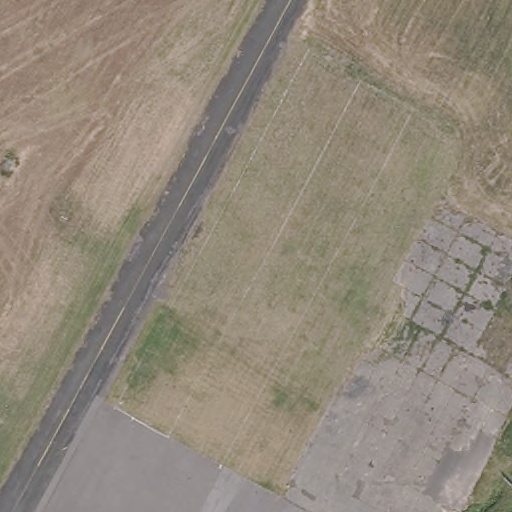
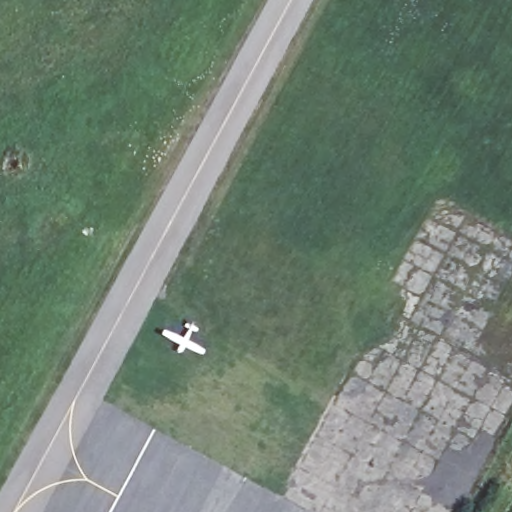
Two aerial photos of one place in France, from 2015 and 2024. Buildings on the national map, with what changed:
[]

